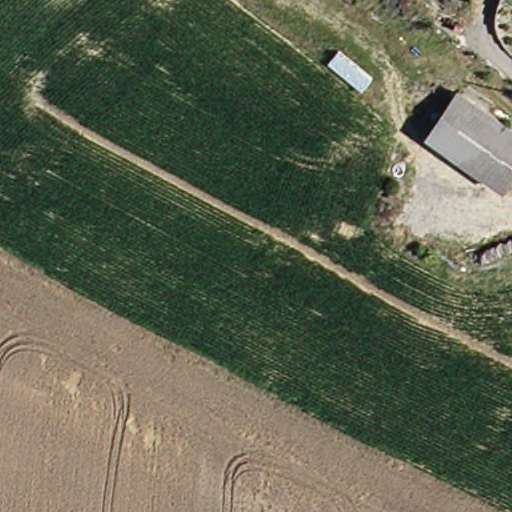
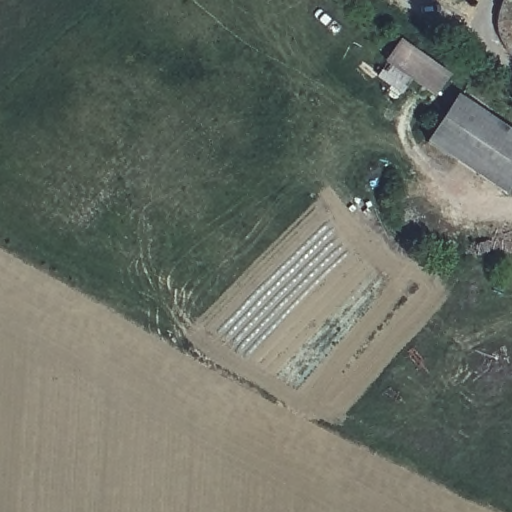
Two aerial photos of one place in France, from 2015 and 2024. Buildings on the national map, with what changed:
new [(383,61),(399,39),(449,75),(433,97),(383,61)]
unchanged [(512,181),(500,198),(426,145),(457,101),(512,140),(512,181)]

